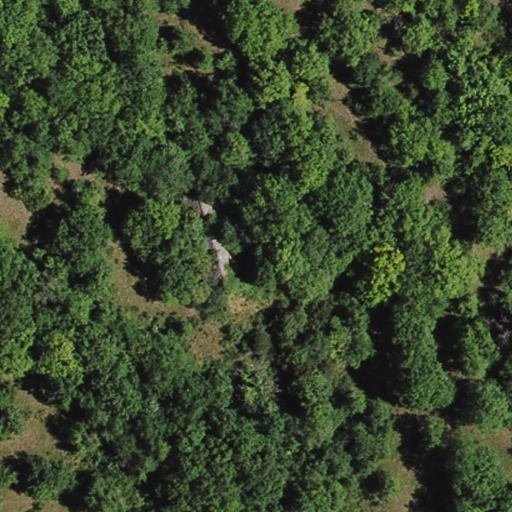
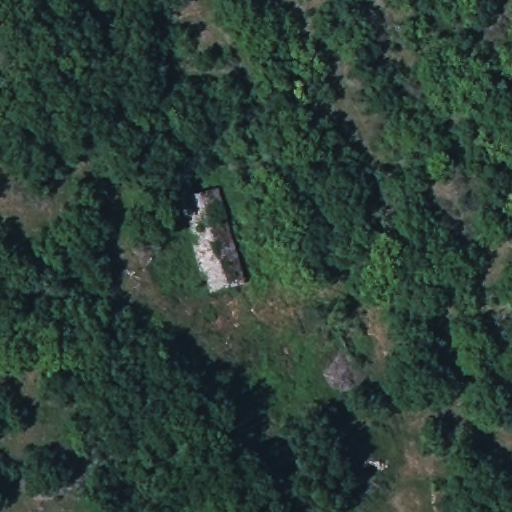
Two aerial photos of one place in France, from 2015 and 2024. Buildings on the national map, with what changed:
unchanged [(245,278),(203,290),(176,194),(214,186),(245,278)]

